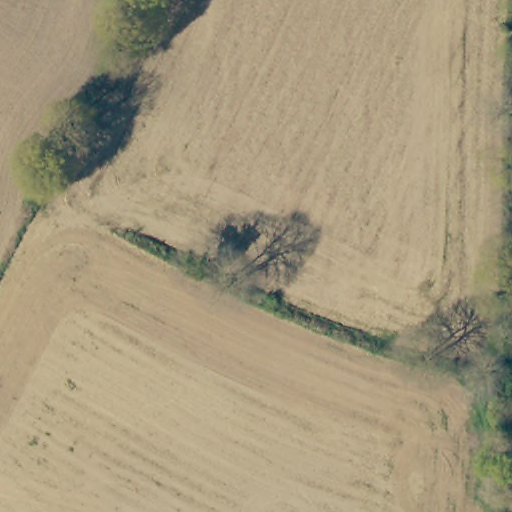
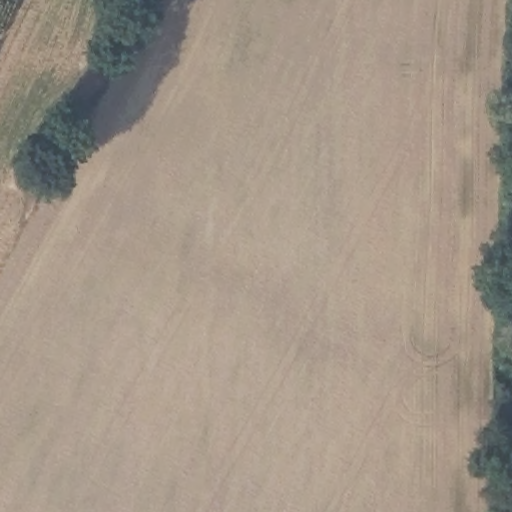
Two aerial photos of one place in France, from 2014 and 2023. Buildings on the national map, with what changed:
[]

